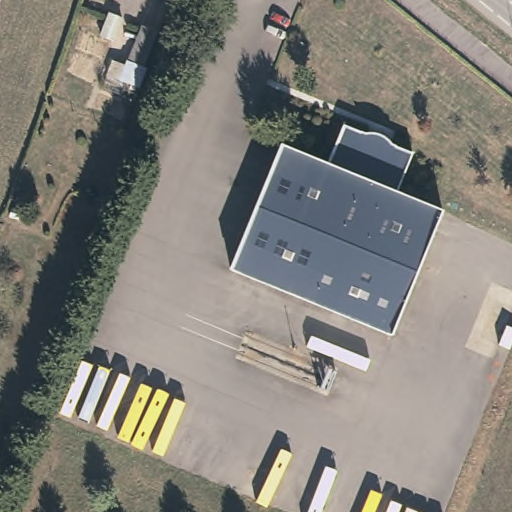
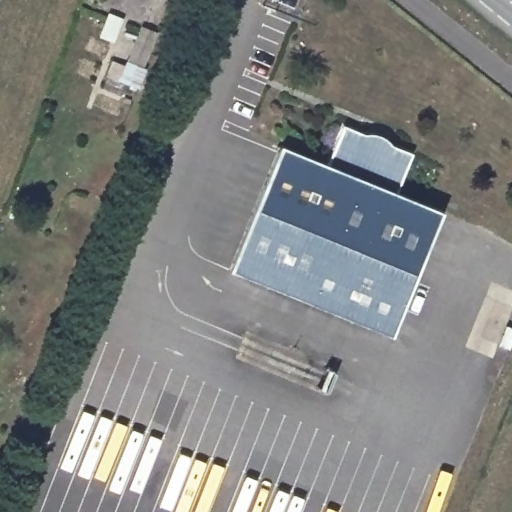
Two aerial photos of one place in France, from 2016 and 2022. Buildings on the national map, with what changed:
unchanged [(128,24),(116,48),(101,41),(111,18),(128,24)]
unchanged [(141,31),(159,37),(146,72),(151,73),(142,95),(106,81),(113,65),(126,69),(141,31)]
unchanged [(344,118),(366,127),(375,126),(388,131),(394,138),(414,147),(399,186),(443,204),(392,331),(230,264),(282,139),(328,157),(344,118)]

